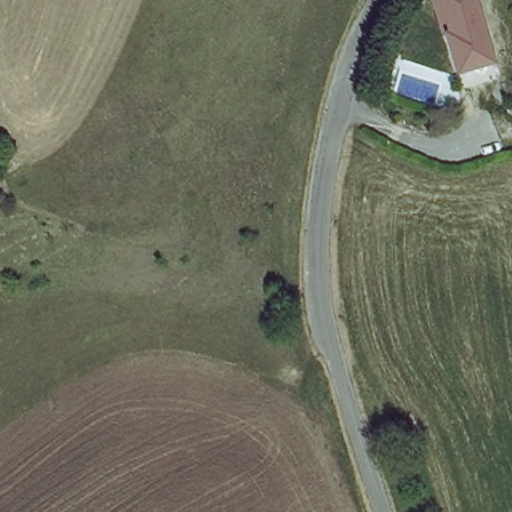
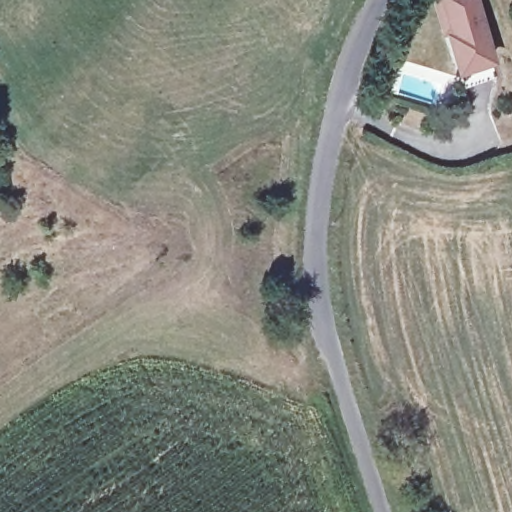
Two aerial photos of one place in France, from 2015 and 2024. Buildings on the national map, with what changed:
unchanged [(495,34),(485,37),(493,60),(450,73),(442,47),(454,45),(448,25),(440,26),(435,7),(434,0),(466,0),(472,23),(489,17),(495,34)]

